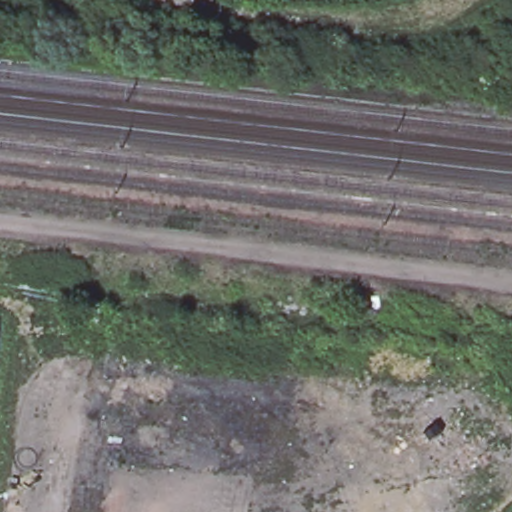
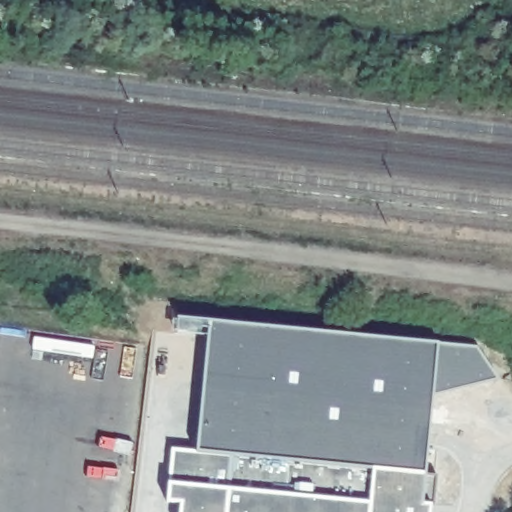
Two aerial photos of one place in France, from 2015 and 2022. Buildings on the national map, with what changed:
new [(437,345),(475,349),(497,379),(429,394),(421,512),(176,512),(177,504),(165,504),(170,451),(195,455),(205,323),(437,345)]

